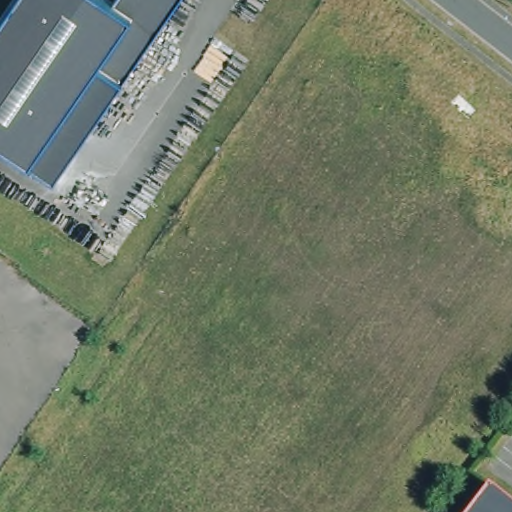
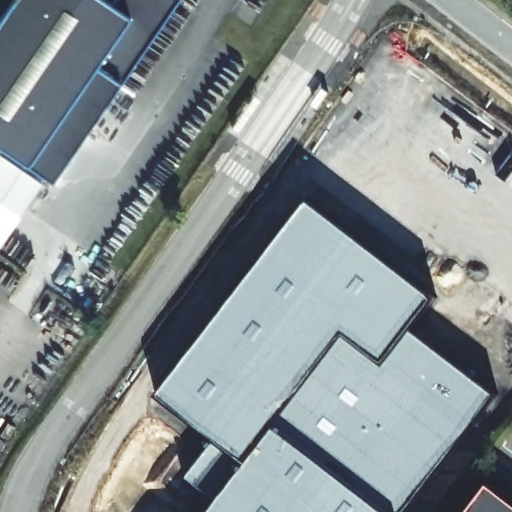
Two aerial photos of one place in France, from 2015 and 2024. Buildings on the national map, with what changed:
unchanged [(107,0),(112,4),(115,0),(177,0),(120,83),(53,182),(43,176),(0,241),(0,21),(14,0),(107,0)]
new [(434,299),(411,329),(495,395),(404,512),(210,512),(219,501),(186,476),(215,438),(158,394),(309,200),(434,299)]
unchanged [(489,485),(512,503),(512,512),(468,512),(489,485)]

